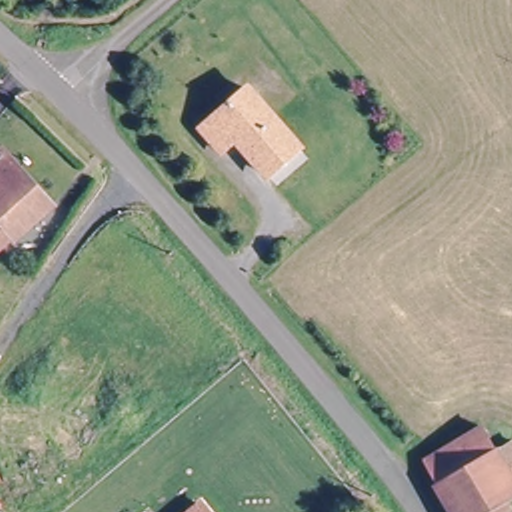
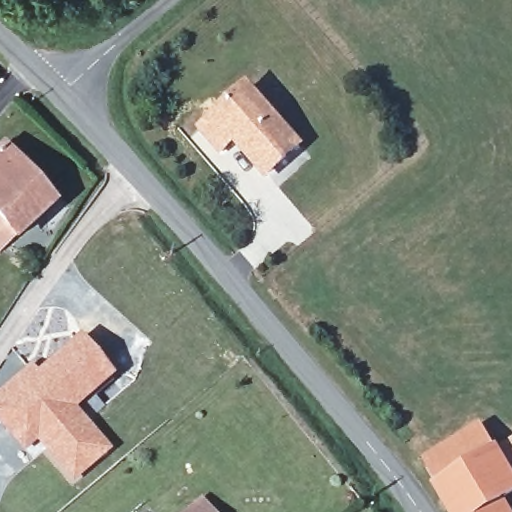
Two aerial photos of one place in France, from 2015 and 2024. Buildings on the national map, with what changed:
unchanged [(264,162),(233,126),(219,136),(202,116),(248,74),(297,132),(264,162)]
unchanged [(53,197),(4,243),(0,238),(0,160),(12,150),(53,197)]
new [(80,335),(116,376),(77,409),(114,452),(73,485),(35,443),(23,452),(0,424),(0,387),(30,362),(38,371),(80,335)]
unchanged [(423,458),(480,423),(494,446),(436,481),(423,458)]
unchanged [(453,512),(436,481),(494,446),(512,439),(512,440),(512,461),(504,465),(512,481),(512,494),(502,500),(482,512),(453,512)]
unchanged [(209,512),(185,512),(199,500),(209,512)]
unchanged [(509,512),(482,512),(502,500),(509,512)]

